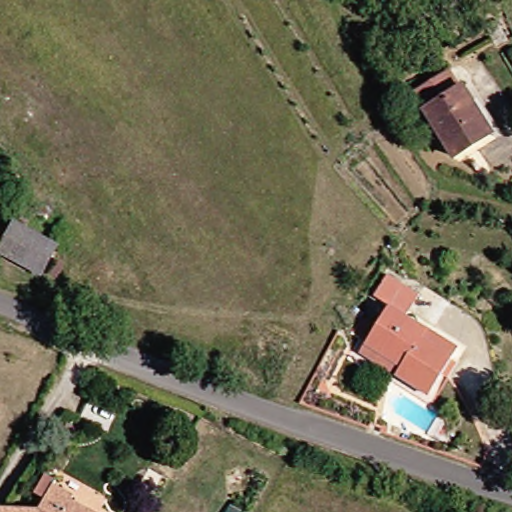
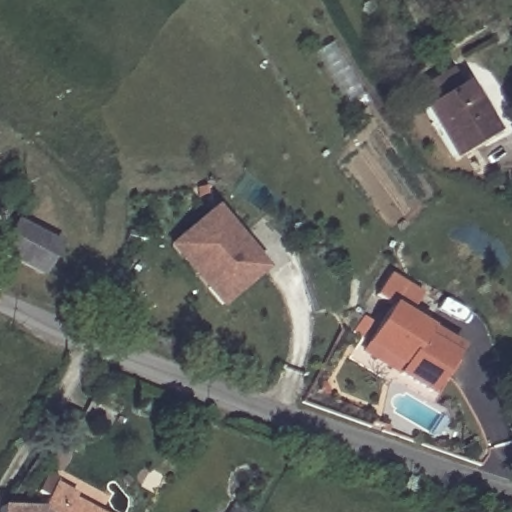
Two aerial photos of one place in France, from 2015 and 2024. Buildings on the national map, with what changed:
unchanged [(449,151),(420,105),(458,81),(488,127),(449,151)]
new [(265,270),(219,308),(164,246),(212,207),(265,270)]
unchanged [(42,274),(0,251),(16,222),(58,245),(42,274)]
unchanged [(367,345),(392,305),(375,295),(388,275),(420,295),(407,316),(428,330),(459,349),(454,357),(429,395),(398,375),(362,353),(367,345)]
unchanged [(352,336),(363,319),(372,324),(361,341),(352,336)]
unchanged [(74,495),(71,499),(94,512),(0,512),(0,508),(40,508),(54,484),(74,495)]

